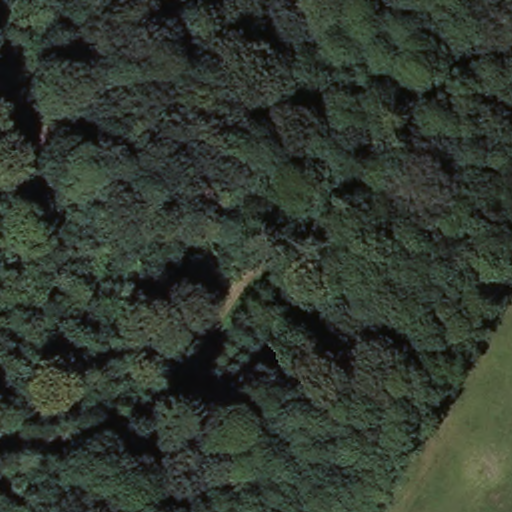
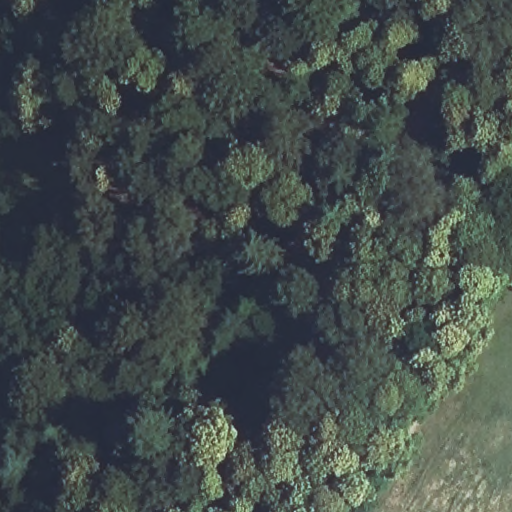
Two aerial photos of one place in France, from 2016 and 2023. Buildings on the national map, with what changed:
[]

